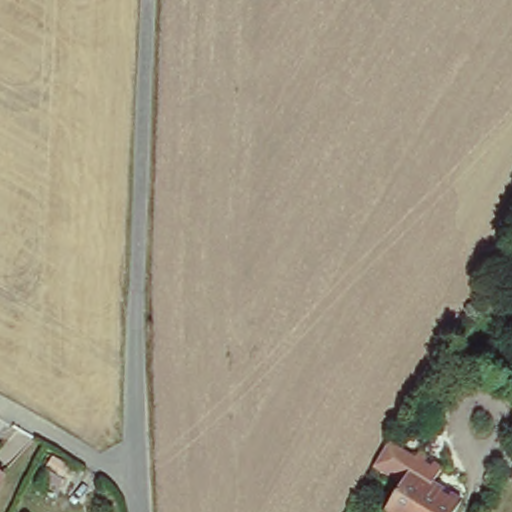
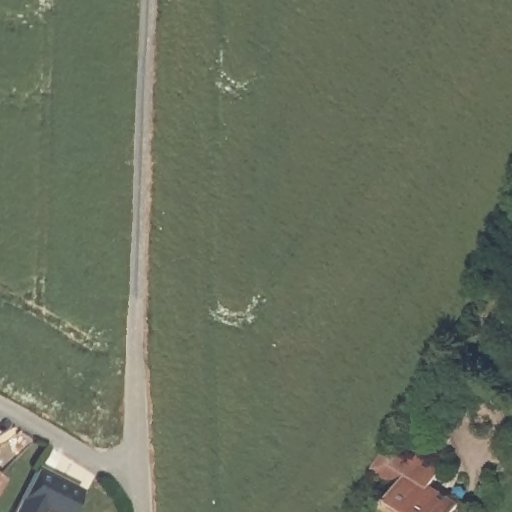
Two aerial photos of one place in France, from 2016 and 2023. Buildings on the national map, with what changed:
unchanged [(430,482),(461,500),(453,512),(384,512),(402,482),(374,465),(389,441),(417,458),(420,453),(441,465),(430,482)]
unchanged [(0,475),(0,470),(2,471),(0,475)]
new [(80,493),(71,512),(46,512),(43,510),(42,512),(14,512),(36,470),(80,493)]

